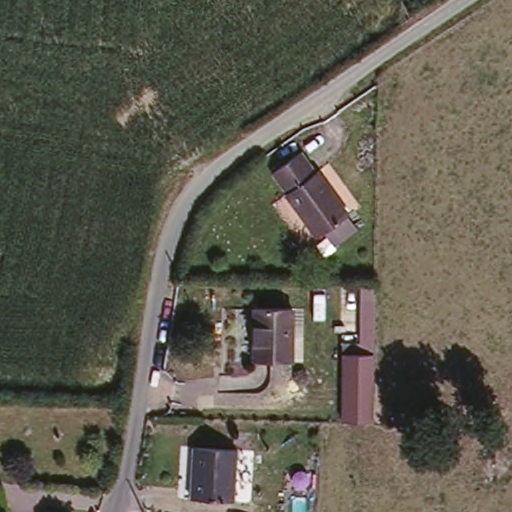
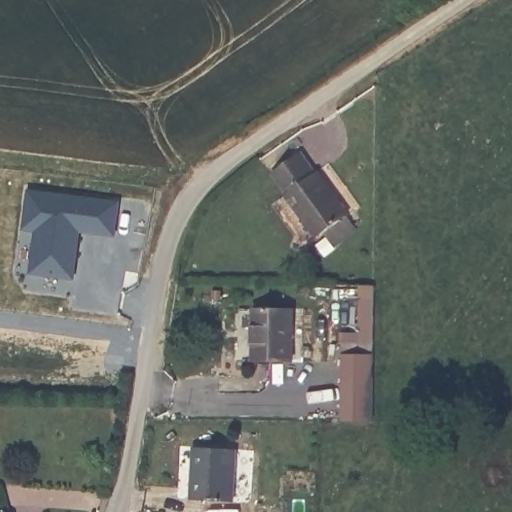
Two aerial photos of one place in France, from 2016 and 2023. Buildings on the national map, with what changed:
unchanged [(299,144),(313,164),(315,162),(356,220),(332,236),(323,223),(315,228),(284,185),(286,184),(271,163),(299,144)]
new [(74,275),(30,271),(34,231),(22,229),(28,191),(119,203),(113,237),(101,235),(79,232),(74,275)]
unchanged [(296,300),(295,353),(258,352),(259,298),(296,300)]
unchanged [(339,423),(341,342),(340,301),(359,302),(372,302),(371,423),(339,423)]
unchanged [(234,440),(232,492),(189,490),(192,437),(234,440)]
unchanged [(9,512),(0,512),(0,505),(5,503),(9,512)]

